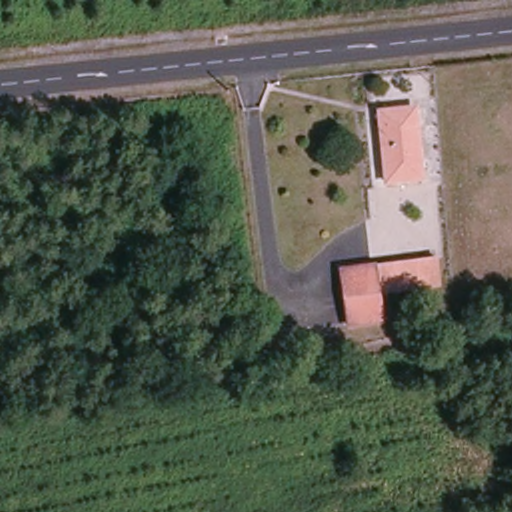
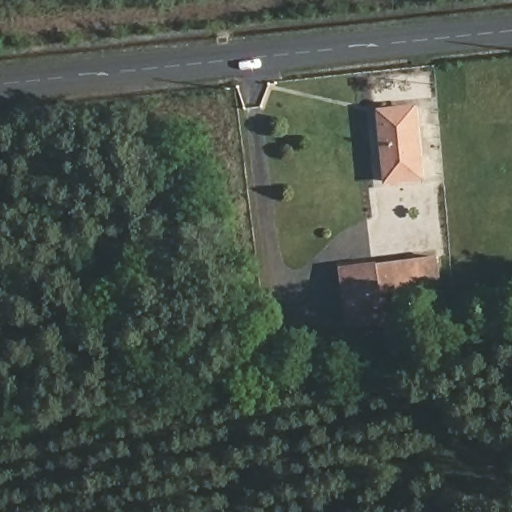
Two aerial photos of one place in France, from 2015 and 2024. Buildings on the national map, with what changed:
unchanged [(420,180),(385,182),(378,113),(413,110),(420,180)]
unchanged [(438,285),(376,292),(380,322),(347,326),(341,270),(436,258),(438,285)]

